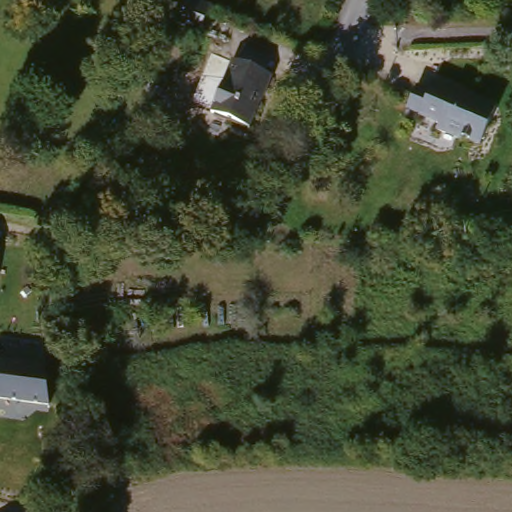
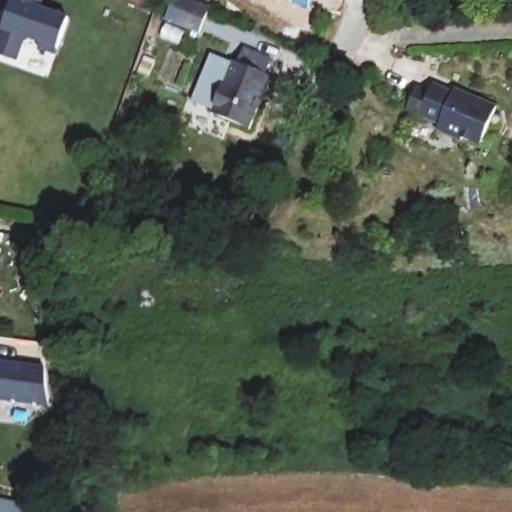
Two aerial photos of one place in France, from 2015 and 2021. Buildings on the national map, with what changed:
new [(8,12),(0,9),(3,0),(44,0),(42,5),(71,16),(60,50),(57,55),(39,49),(41,45),(26,39),(17,62),(0,56),(0,33),(1,31),(8,12)]
unchanged [(165,3),(192,14),(182,41),(147,28),(158,1),(165,3)]
unchanged [(247,45),(273,54),(267,69),(274,72),(269,84),(266,83),(252,121),(216,107),(235,57),(241,59),(247,45)]
unchanged [(438,82),(457,89),(458,85),(497,100),(485,143),(446,128),(448,118),(430,110),(418,105),(424,85),(431,87),(437,89),(438,82)]
unchanged [(0,401),(0,358),(50,365),(47,407),(0,401)]

